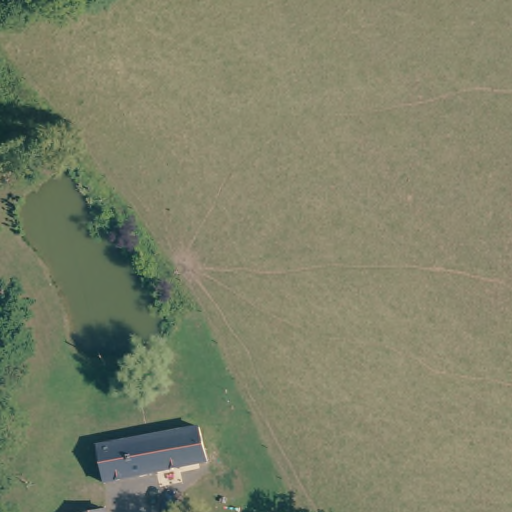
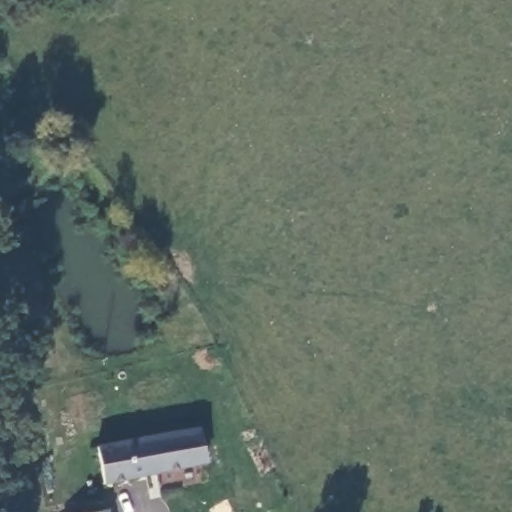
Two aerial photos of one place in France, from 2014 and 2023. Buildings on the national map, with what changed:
unchanged [(103,484),(98,445),(196,428),(206,464),(103,484)]

